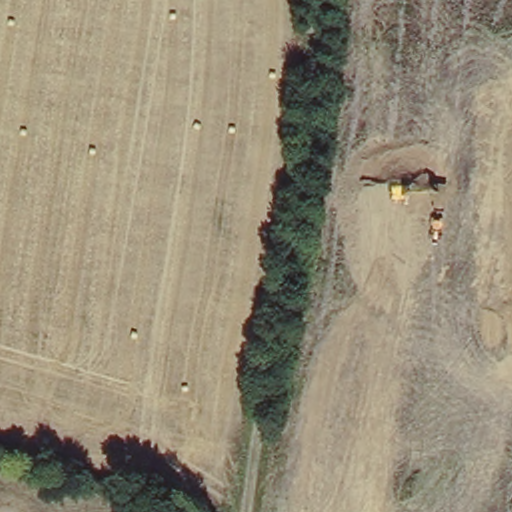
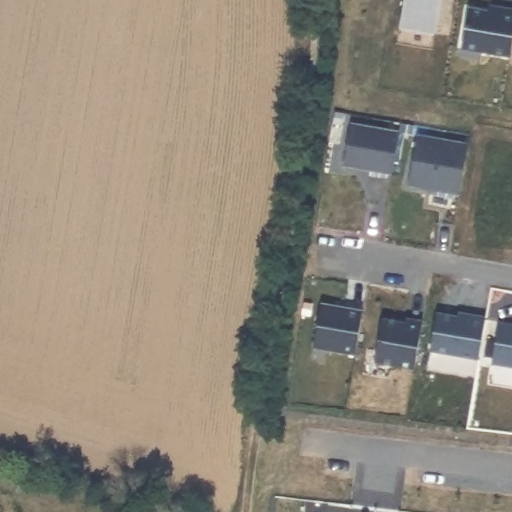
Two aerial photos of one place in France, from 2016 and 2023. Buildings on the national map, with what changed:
new [(389,172),(340,163),(348,120),(396,129),(389,172)]
new [(456,192),(405,184),(414,132),(465,141),(456,192)]
new [(352,353),(311,346),(318,301),(360,308),(352,353)]
new [(475,358),(427,350),(434,311),(466,316),(467,312),(483,315),(475,358)]
new [(412,366),(372,360),(379,317),(402,321),(403,317),(420,320),(412,366)]
new [(488,362),(496,320),(512,323),(512,366),(488,362)]

